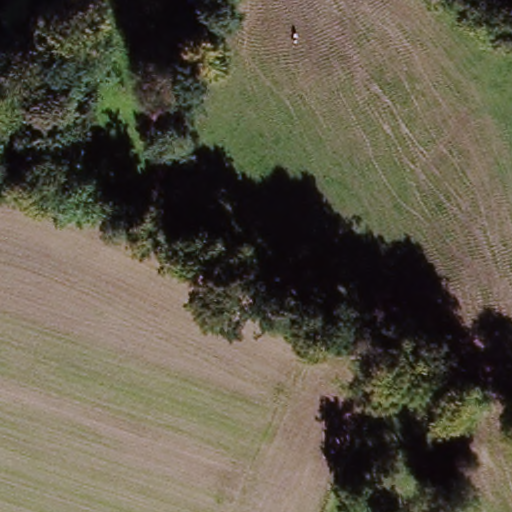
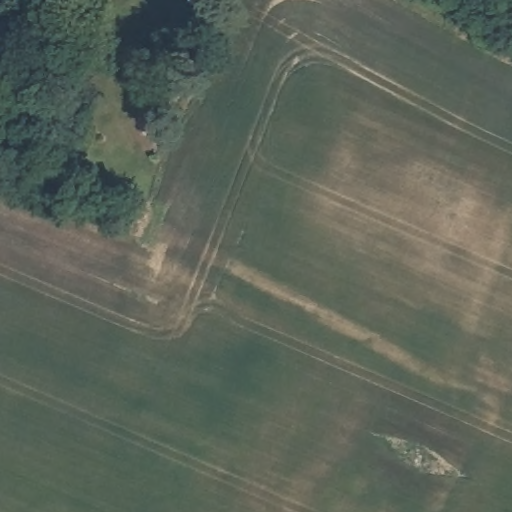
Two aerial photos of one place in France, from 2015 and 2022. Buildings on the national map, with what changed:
unchanged [(9,26),(0,24),(0,0),(16,0),(9,26)]

